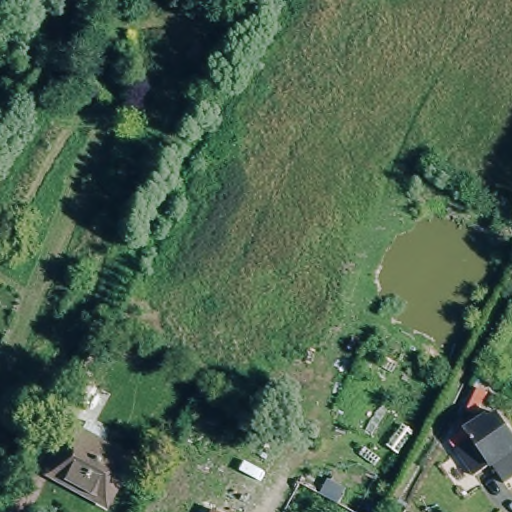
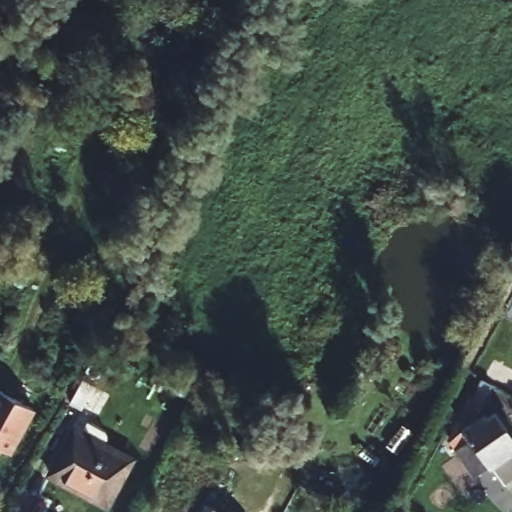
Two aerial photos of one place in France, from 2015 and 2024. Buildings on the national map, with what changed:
unchanged [(84,413),(74,408),(86,385),(95,391),(84,413)]
new [(36,410),(12,454),(0,448),(0,391),(36,410)]
unchanged [(474,418),(484,394),(494,399),(484,422),(474,418)]
unchanged [(498,469),(479,480),(463,454),(476,446),(470,435),(491,422),(494,427),(504,421),(512,435),(512,491),(511,492),(498,469)]
unchanged [(113,507),(55,476),(77,435),(81,437),(87,424),(110,436),(104,448),(136,466),(113,507)]

